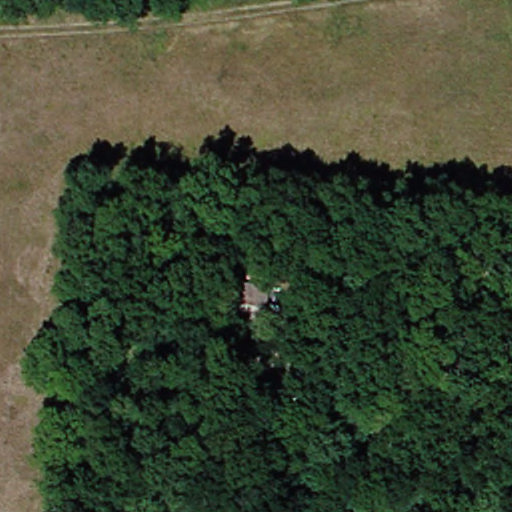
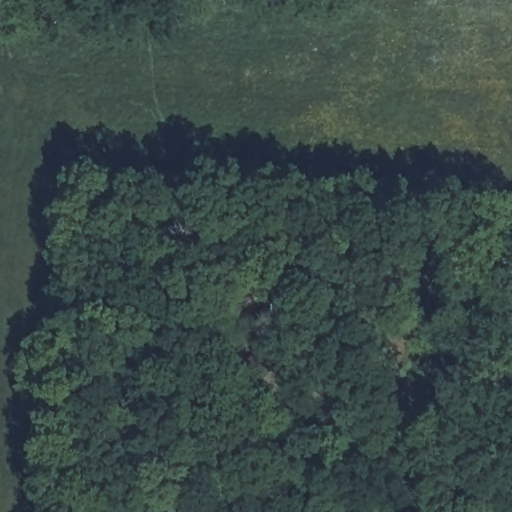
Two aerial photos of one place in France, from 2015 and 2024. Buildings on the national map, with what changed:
unchanged [(287,307),(273,305),(258,303),(260,285),(275,289),(288,289),(287,307)]

